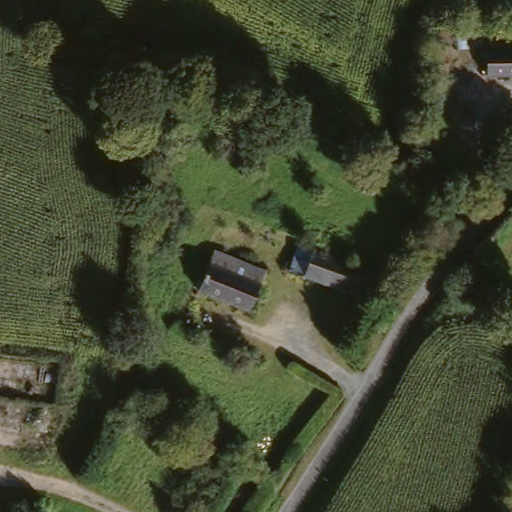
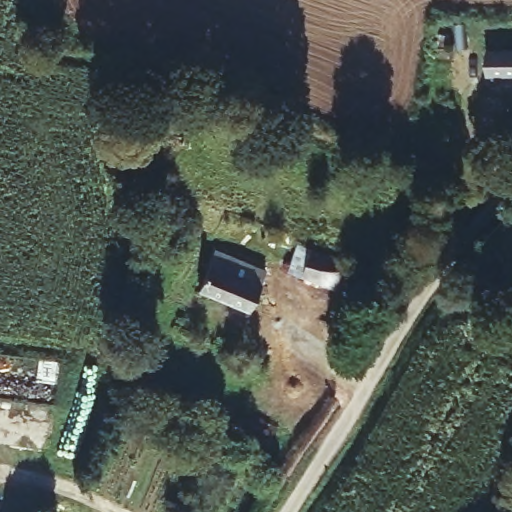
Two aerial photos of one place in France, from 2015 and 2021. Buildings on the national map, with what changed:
unchanged [(484,50),(490,50),(512,50),(512,74),(485,75),(484,50)]
unchanged [(293,273),(302,247),(394,276),(385,303),(293,273)]
unchanged [(268,269),(250,307),(201,287),(219,249),(268,269)]

